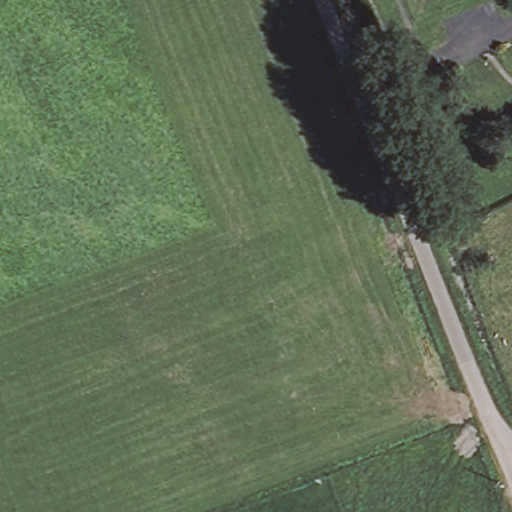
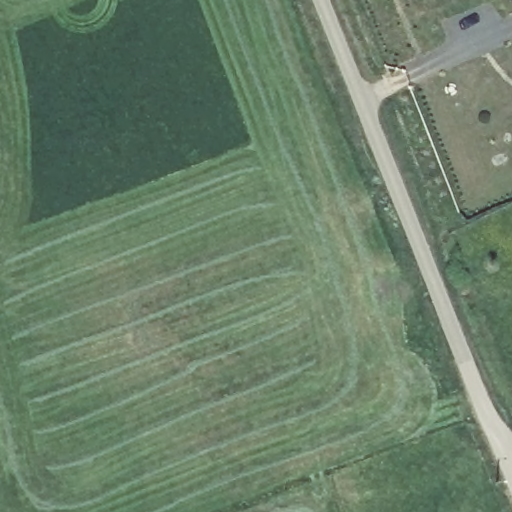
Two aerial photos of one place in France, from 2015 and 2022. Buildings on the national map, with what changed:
[]

